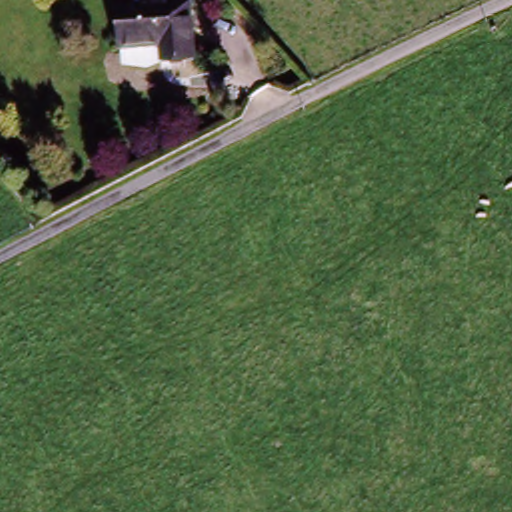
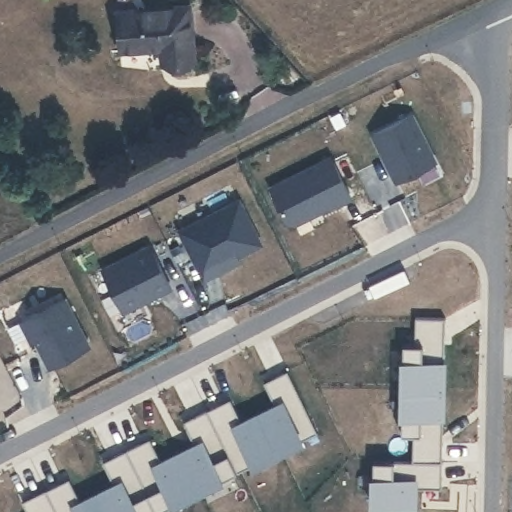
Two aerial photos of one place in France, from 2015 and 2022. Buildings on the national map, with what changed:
unchanged [(192,4),(192,59),(161,61),(161,47),(122,49),(120,8),(192,4)]
new [(434,159),(396,178),(373,131),(410,112),(434,159)]
new [(351,195),(337,202),(335,200),(293,221),(288,219),(271,186),(331,156),(351,195)]
new [(168,284),(122,308),(102,268),(148,245),(168,284)]
new [(87,344),(50,364),(37,338),(32,340),(21,319),(63,297),(87,344)]
new [(414,339),(414,330),(414,312),(443,313),(443,331),(443,339),(414,339)]
new [(401,427),(402,338),(443,339),(441,428),(412,427),(401,427)]
new [(117,479),(106,456),(139,440),(146,436),(157,459),(150,463),(197,440),(190,443),(178,420),(185,417),(218,401),(230,423),(277,400),(265,377),(281,369),(312,430),(147,512),(34,512),(26,496),(59,480),(66,476),(77,499),(70,503),(117,479)]
new [(277,400),(270,404),(258,381),(265,377),(277,400)]
new [(237,420),(230,423),(218,401),(225,397),(237,420)]
new [(415,481),(415,473),(414,499),(372,498),(373,454),(412,454),(412,435),(413,427),(441,428),(441,436),(440,473),(440,481),(415,481)]
new [(117,479),(110,483),(98,460),(106,456),(117,479)]
new [(34,512),(25,512),(19,500),(26,496),(34,512)]

